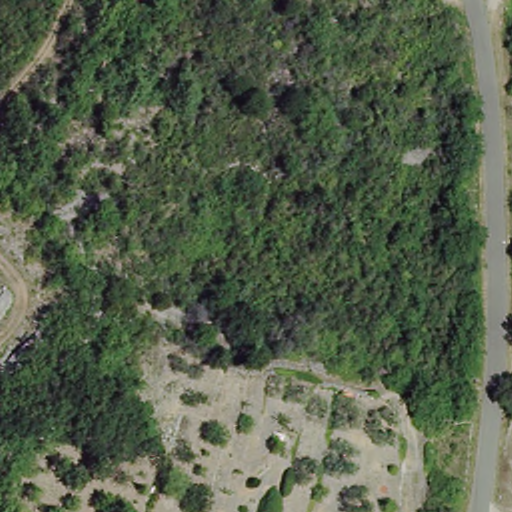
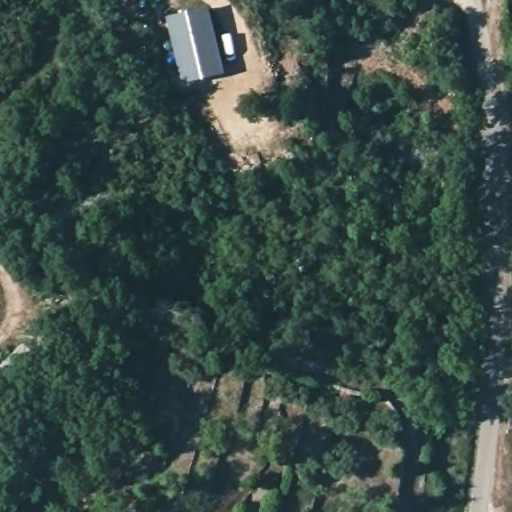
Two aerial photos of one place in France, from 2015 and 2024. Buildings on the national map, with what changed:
new [(210,8),(225,74),(184,83),(169,18),(210,8)]

